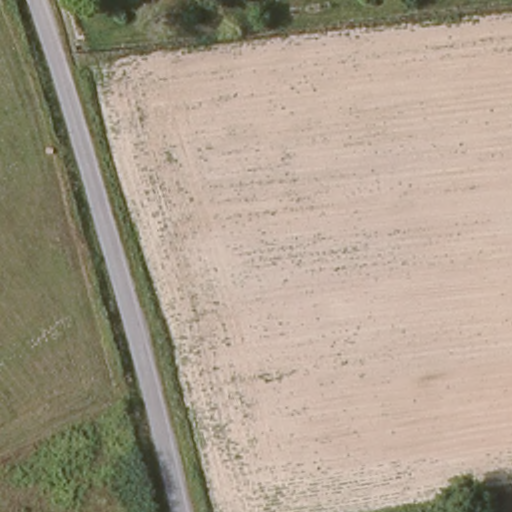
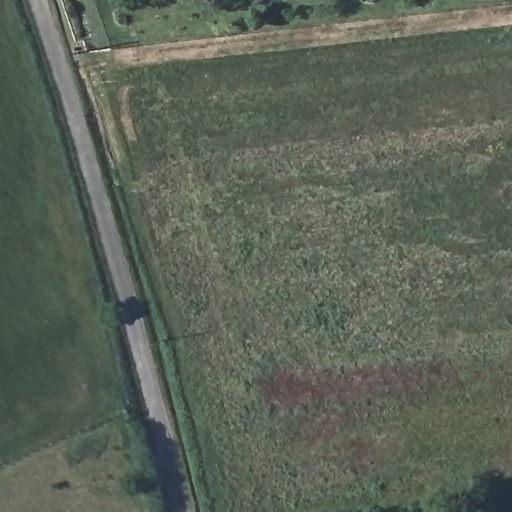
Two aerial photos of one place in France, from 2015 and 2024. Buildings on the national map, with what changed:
[]

